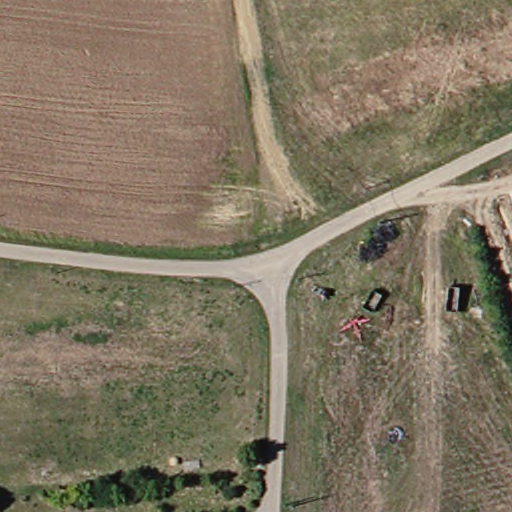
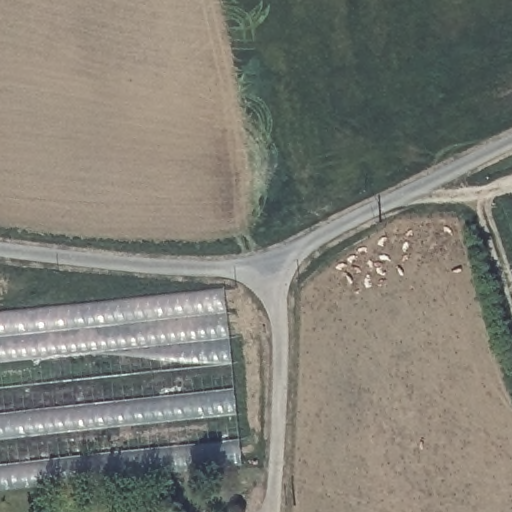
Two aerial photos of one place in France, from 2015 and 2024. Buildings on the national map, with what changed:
unchanged [(512,199),(512,235),(501,204),(512,199)]
new [(224,290),(240,460),(0,488),(0,310),(224,290)]

